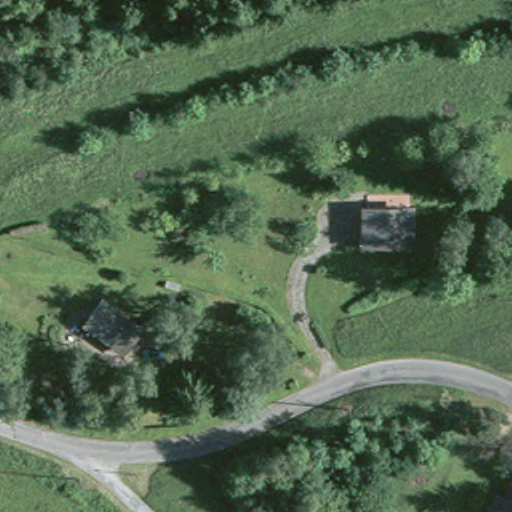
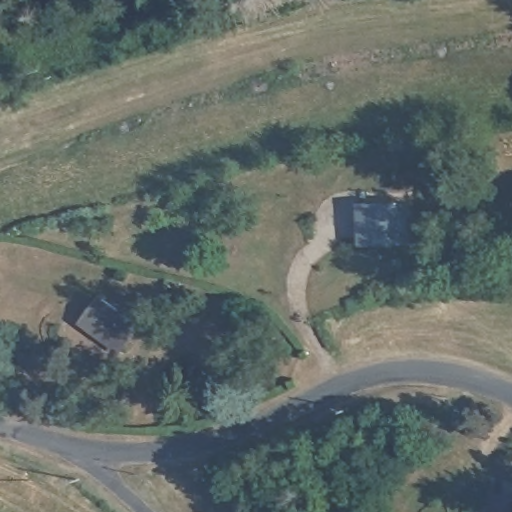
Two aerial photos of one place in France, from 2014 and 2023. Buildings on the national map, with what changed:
unchanged [(410,245),(361,245),(360,198),(409,202),(410,245)]
unchanged [(149,334),(127,359),(75,321),(102,295),(149,334)]
unchanged [(227,374),(210,361),(212,358),(197,347),(207,330),(239,355),(227,374)]
unchanged [(486,512),(492,493),(497,495),(502,478),(512,481),(512,512),(486,512)]

